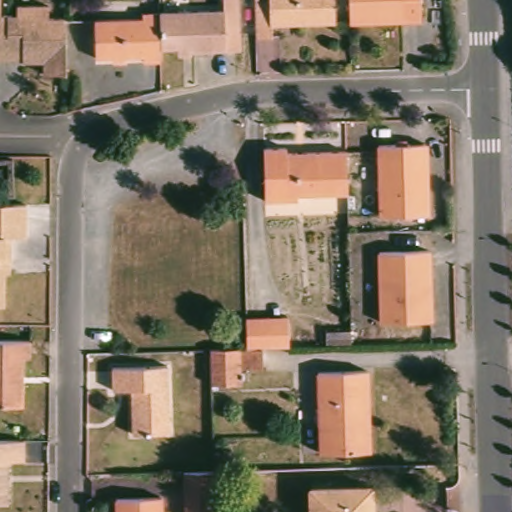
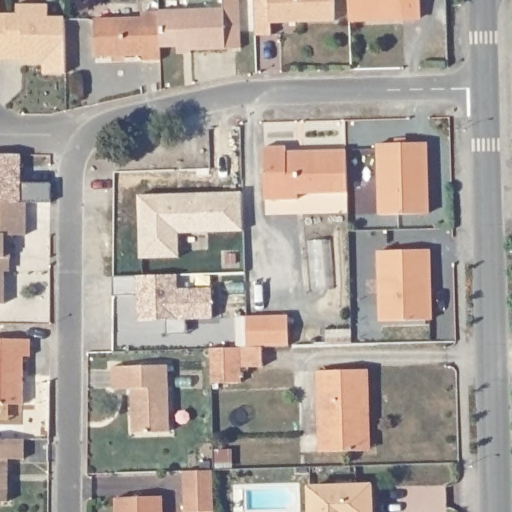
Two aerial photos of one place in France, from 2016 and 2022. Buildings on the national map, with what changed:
unchanged [(177,55),(177,48),(160,48),(160,39),(159,13),(159,12),(224,10),(223,0),(239,0),(240,33),(240,50),(225,50),(189,51),(190,54),(177,55)]
unchanged [(281,23),(281,36),(265,36),(264,0),(344,0),(345,21),(281,23)]
unchanged [(421,19),(350,21),(349,0),(420,0),(421,19)]
unchanged [(39,63),(39,62),(17,62),(17,60),(0,60),(0,15),(2,15),(11,15),(11,6),(43,6),(43,18),(60,18),(60,23),(61,74),(39,74),(39,63)]
unchanged [(159,13),(160,39),(160,48),(160,61),(144,61),(143,55),(96,58),(94,20),(142,19),(141,13),(159,13)]
unchanged [(426,143),(428,215),(381,216),(379,145),(426,143)]
unchanged [(287,147),(287,152),(346,151),(347,193),(298,195),(298,200),(265,201),(264,148),(287,147)]
new [(160,258),(140,259),(139,196),(243,193),(244,232),(178,234),(179,245),(179,258),(160,258)]
unchanged [(21,236),(6,236),(6,258),(0,258),(0,203),(21,203),(21,236)]
unchanged [(381,317),(379,247),(429,246),(431,316),(381,317)]
new [(168,335),(167,320),(139,321),(138,296),(114,297),(113,277),(178,275),(178,290),(212,289),(213,319),(187,320),(187,335),(168,335)]
unchanged [(288,316),(289,347),(262,348),(247,348),(246,318),(288,316)]
unchanged [(326,344),(326,330),(351,330),(352,343),(326,344)]
unchanged [(0,405),(0,340),(30,340),(30,357),(23,357),(23,405),(0,405)]
unchanged [(247,348),(262,348),(263,368),(242,368),(242,384),(211,384),(210,349),(247,348)]
unchanged [(113,390),(112,368),(168,365),(170,432),(133,434),(131,389),(113,390)]
unchanged [(363,452),(320,453),(318,372),(368,370),(369,413),(370,452),(363,452)]
unchanged [(8,459),(8,503),(0,503),(0,440),(25,440),(25,459),(8,459)]
unchanged [(232,450),(233,468),(216,468),(216,450),(232,450)]
unchanged [(210,512),(181,512),(180,472),(210,472),(210,512)]
unchanged [(371,491),(371,512),(311,512),(311,493),(371,491)]
unchanged [(161,497),(161,512),(117,512),(117,498),(161,497)]

